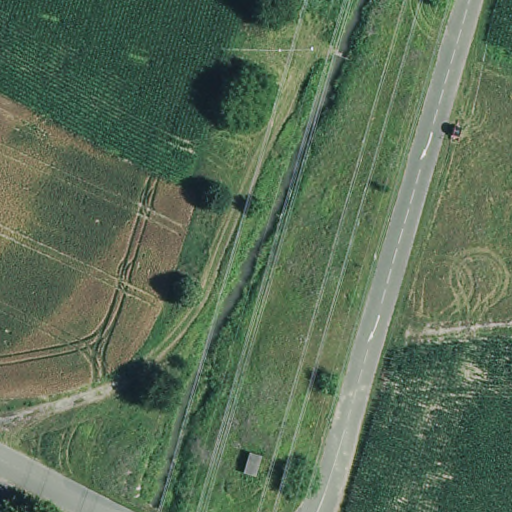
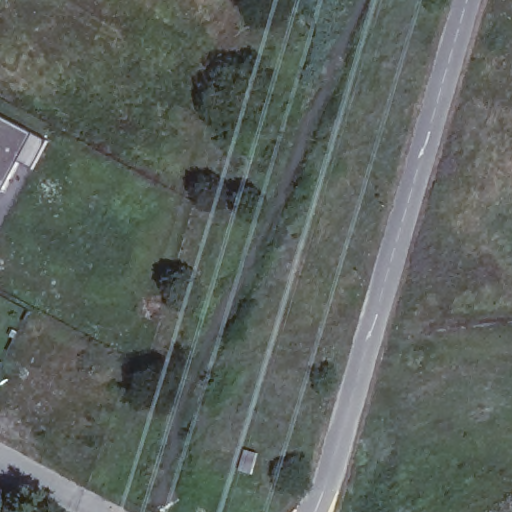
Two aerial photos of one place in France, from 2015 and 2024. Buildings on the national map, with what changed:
new [(38,168),(23,159),(8,191),(0,187),(0,120),(2,116),(52,140),(38,168)]
unchanged [(260,454),(253,476),(240,472),(247,450),(260,454)]

